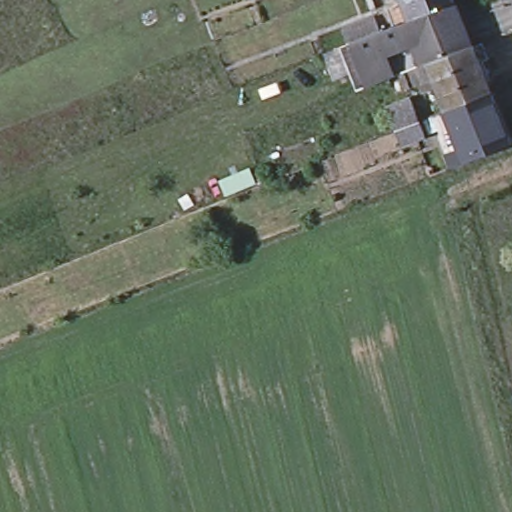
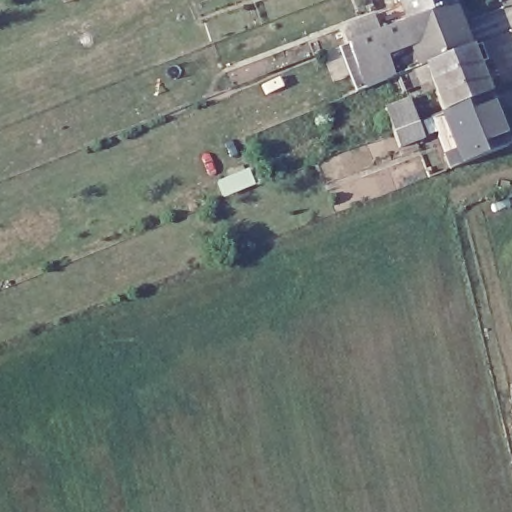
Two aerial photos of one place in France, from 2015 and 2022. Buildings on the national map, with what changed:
unchanged [(395,8),(404,1),(403,0),(455,0),(456,3),(473,46),(474,47),(485,42),(492,58),(480,63),(491,93),(497,91),(510,122),(504,125),(512,145),(466,163),(455,168),(449,153),(460,149),(452,126),(442,130),(437,115),(445,111),(449,110),(436,78),(423,83),(417,68),(402,74),(391,78),(369,87),(360,91),(343,46),(350,43),(345,27),(377,15),(395,8)]
unchanged [(399,146),(393,130),(385,106),(409,98),(417,121),(422,137),(399,146)]

